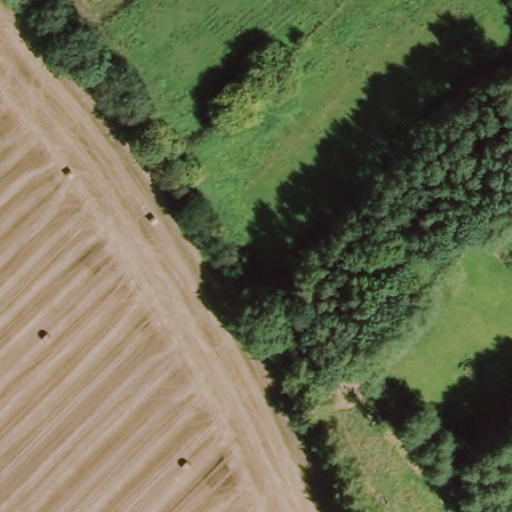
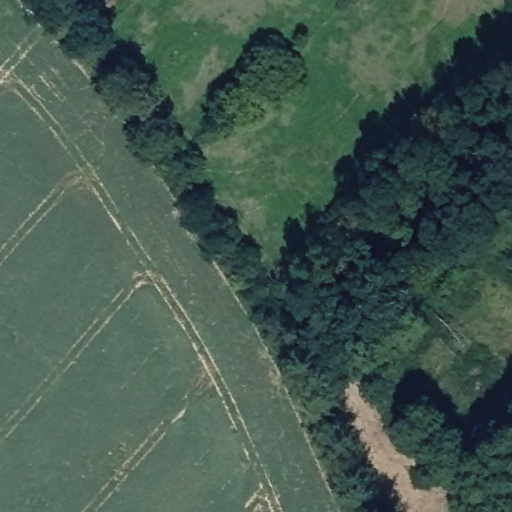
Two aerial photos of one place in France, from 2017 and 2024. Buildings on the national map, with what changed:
[]

